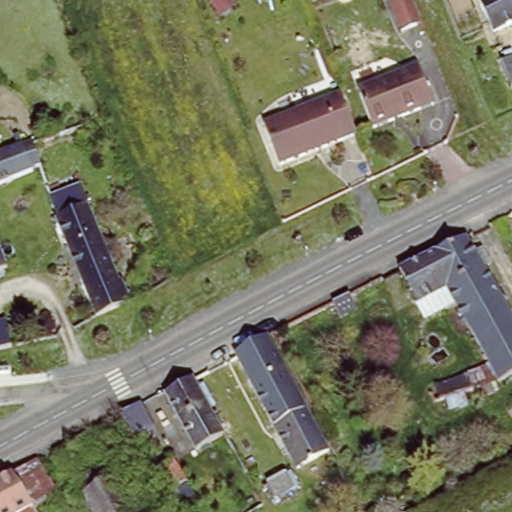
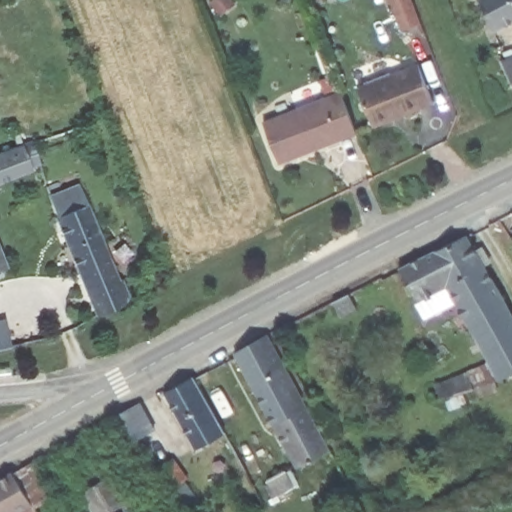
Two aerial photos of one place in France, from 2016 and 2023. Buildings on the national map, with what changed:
unchanged [(381,0),(406,0),(418,27),(395,35),(381,0)]
unchanged [(500,34),(485,0),(512,0),(512,27),(500,34)]
unchanged [(512,63),(512,90),(508,92),(493,64),(497,62),(508,56),(512,63)]
unchanged [(417,65),(432,104),(371,127),(356,87),(417,65)]
unchanged [(351,139),(275,170),(258,128),(334,97),(351,139)]
unchanged [(45,165),(0,183),(0,154),(35,140),(45,165)]
unchanged [(123,286),(129,283),(135,297),(99,314),(49,190),(80,178),(123,286)]
unchanged [(465,232),(512,312),(512,383),(509,385),(450,281),(444,285),(439,275),(418,287),(403,262),(465,232)]
unchanged [(0,272),(0,246),(8,268),(0,272)]
unchanged [(344,294),(351,306),(323,320),(316,307),(344,294)]
unchanged [(0,350),(0,326),(5,349),(0,350)]
unchanged [(270,330),(330,442),(298,461),(239,347),(270,330)]
unchanged [(230,446),(204,460),(160,388),(187,373),(230,446)]
unchanged [(465,391),(471,402),(452,413),(445,402),(465,391)]
unchanged [(145,430),(132,439),(114,415),(128,406),(145,430)]
unchanged [(180,477),(175,480),(187,496),(178,503),(151,466),(165,456),(180,477)]
unchanged [(58,493),(22,512),(0,512),(0,481),(42,460),(58,493)]
unchanged [(290,460),(300,475),(272,492),(262,477),(290,460)]
unchanged [(89,512),(78,496),(89,488),(110,478),(133,512),(89,512)]
unchanged [(48,512),(44,512),(47,510),(48,512)]

